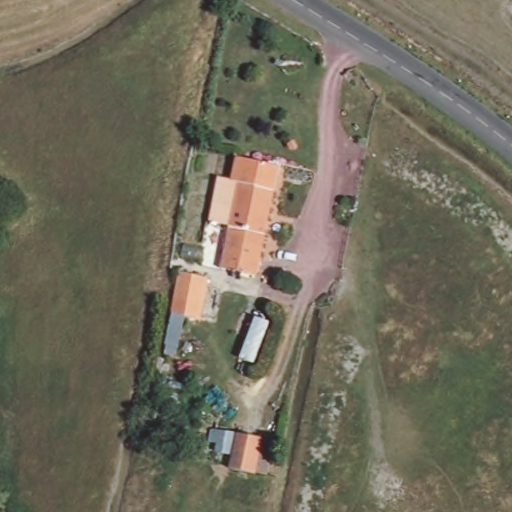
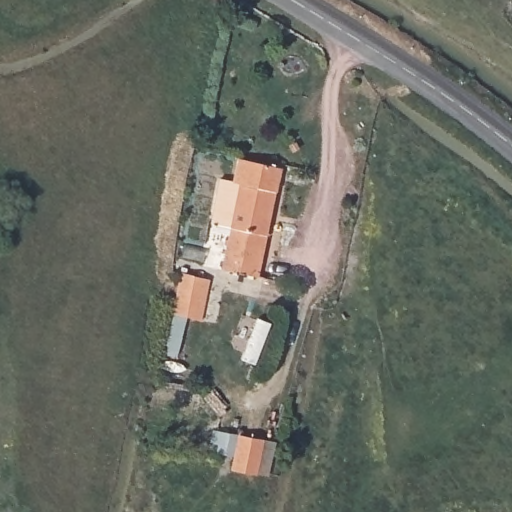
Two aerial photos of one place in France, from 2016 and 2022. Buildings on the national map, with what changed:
unchanged [(231,181),(236,157),(280,171),(258,276),(220,270),(229,227),(209,223),(219,179),(231,181)]
unchanged [(214,277),(204,325),(174,318),(182,271),(214,277)]
unchanged [(262,442),(255,480),(230,475),(239,437),(262,442)]

